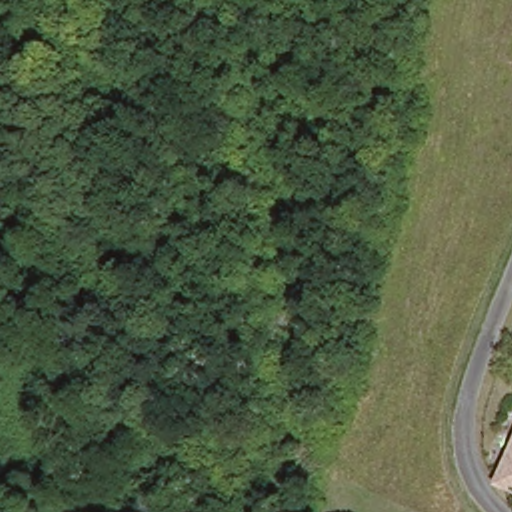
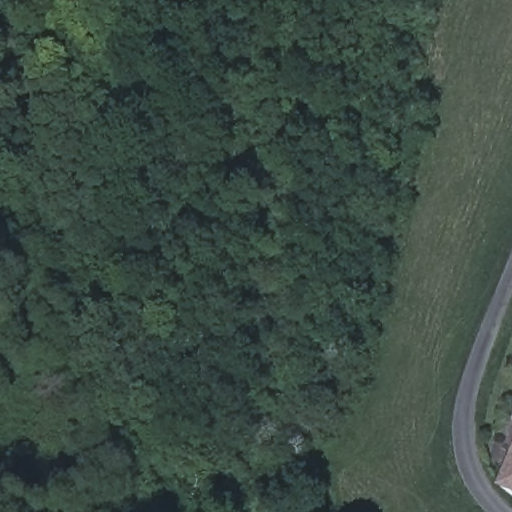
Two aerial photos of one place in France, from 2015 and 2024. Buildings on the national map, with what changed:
unchanged [(512,440),(512,493),(493,486),(512,440)]

